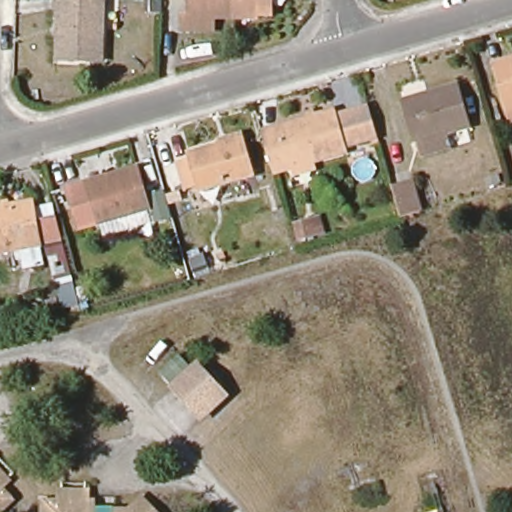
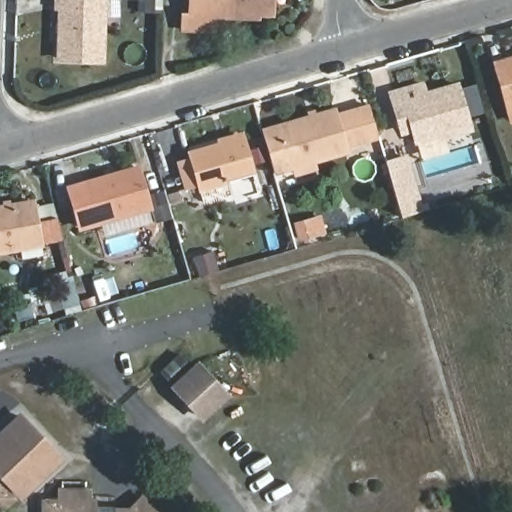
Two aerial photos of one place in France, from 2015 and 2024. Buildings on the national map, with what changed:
unchanged [(104,58),(62,57),(63,8),(55,8),(55,0),(106,0),(104,58)]
unchanged [(268,13),(256,13),(255,19),(214,18),(213,34),(180,34),(180,16),(187,15),(188,0),(268,0),(268,13)]
unchanged [(512,122),(508,123),(491,66),(512,60),(512,122)]
unchanged [(418,153),(415,140),(402,100),(453,85),(466,126),(442,133),(445,145),(418,153)]
unchanged [(312,170),(311,170),(292,176),(289,166),(276,170),(263,131),(332,109),(334,117),(368,107),(377,137),(344,147),(344,150),(308,160),(308,161),(312,170)]
unchanged [(248,173),(197,188),(187,155),(219,145),(217,140),(236,134),(248,173)]
unchanged [(78,227),(66,187),(135,167),(146,203),(147,207),(78,227)]
unchanged [(421,210),(401,216),(393,189),(413,183),(421,210)]
unchanged [(61,241),(0,253),(0,206),(32,199),(36,220),(54,216),(61,241)]
unchanged [(325,237),(301,244),(296,225),(320,218),(325,237)]
unchanged [(213,237),(219,257),(198,263),(191,244),(213,237)]
unchanged [(198,360),(231,395),(202,424),(168,388),(198,360)]
new [(19,413),(63,458),(21,501),(5,484),(11,479),(0,468),(0,431),(19,413)]
unchanged [(11,479),(5,484),(3,486),(14,498),(0,511),(0,468),(11,479)]
unchanged [(55,500),(56,489),(85,490),(86,498),(96,498),(96,505),(113,506),(130,506),(139,498),(156,512),(41,512),(41,501),(55,500)]

